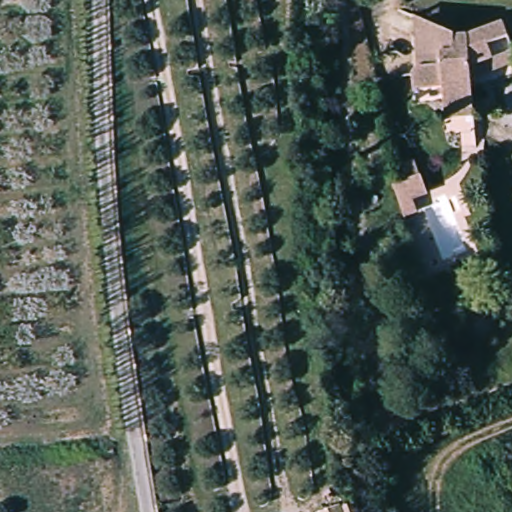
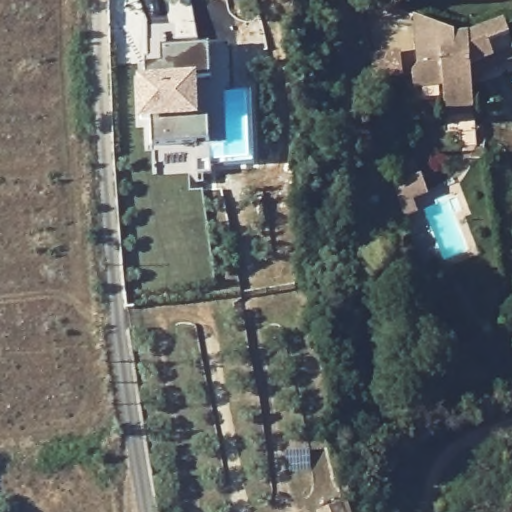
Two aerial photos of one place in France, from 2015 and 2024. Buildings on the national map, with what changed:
unchanged [(442,129),(442,81),(411,80),(410,66),(418,62),(415,32),(422,16),(456,31),(457,38),(507,23),(512,42),(512,64),(472,77),(474,130),(442,129)]
new [(149,122),(139,122),(137,79),(146,79),(146,65),(163,64),(161,49),(209,47),(211,80),(198,80),(199,116),(209,115),(210,144),(153,146),(149,122)]
unchanged [(341,503),(344,512),(316,512),(341,503)]

